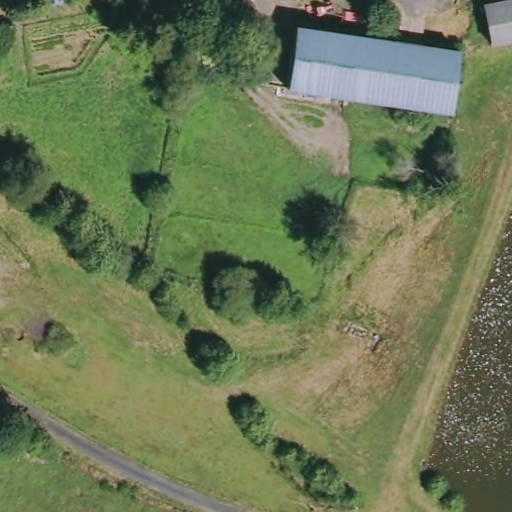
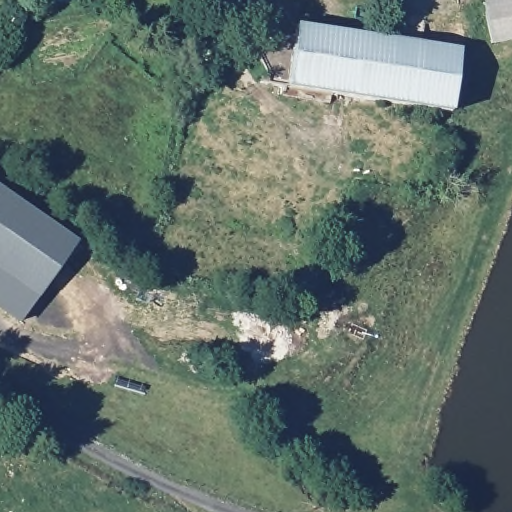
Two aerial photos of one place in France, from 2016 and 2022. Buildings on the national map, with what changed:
unchanged [(512,46),(496,49),(489,8),(512,4),(512,46)]
unchanged [(292,91),(300,29),(464,54),(453,112),(292,91)]
new [(0,272),(0,190),(76,241),(38,299),(0,272)]

